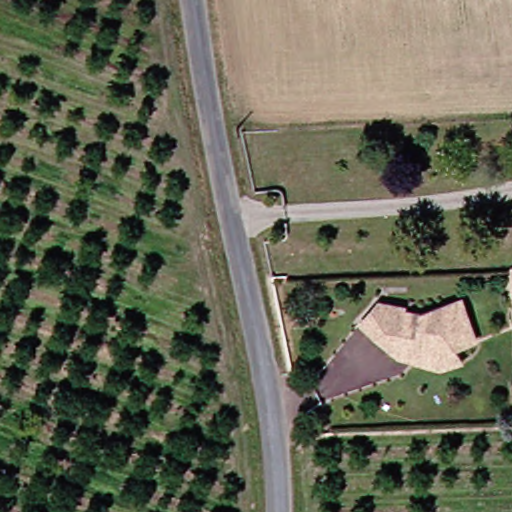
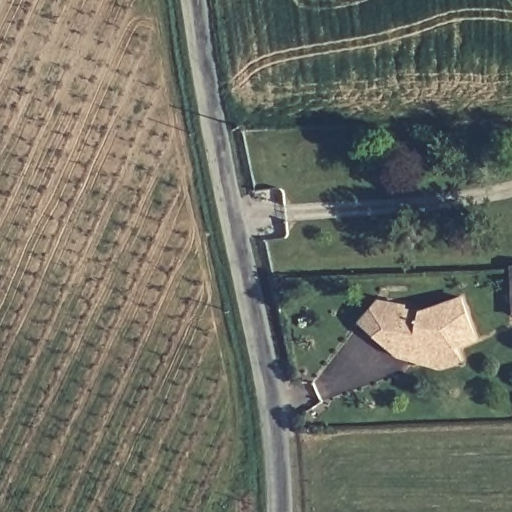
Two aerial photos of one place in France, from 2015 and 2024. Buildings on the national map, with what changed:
unchanged [(447,371),(403,360),(365,325),(384,304),(411,310),(410,313),(425,316),(465,301),(481,341),(462,349),(468,363),(447,371)]

